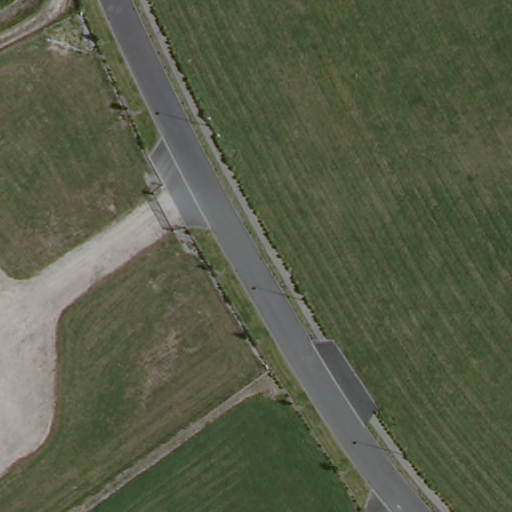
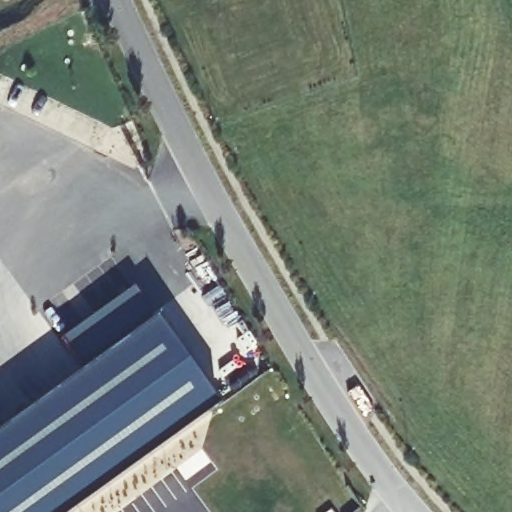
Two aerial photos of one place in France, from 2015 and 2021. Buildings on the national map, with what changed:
new [(155,320),(217,408),(75,512),(0,512),(0,432),(155,320)]

